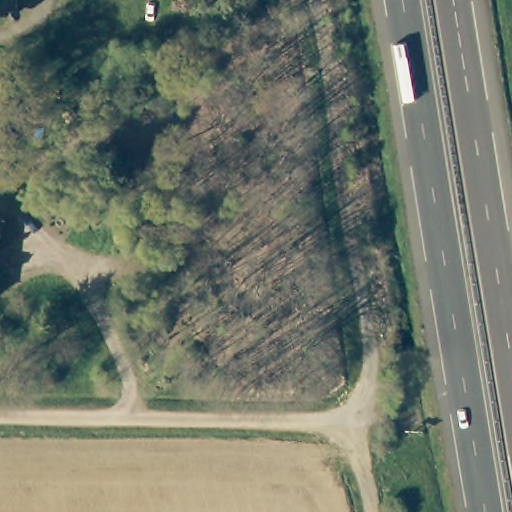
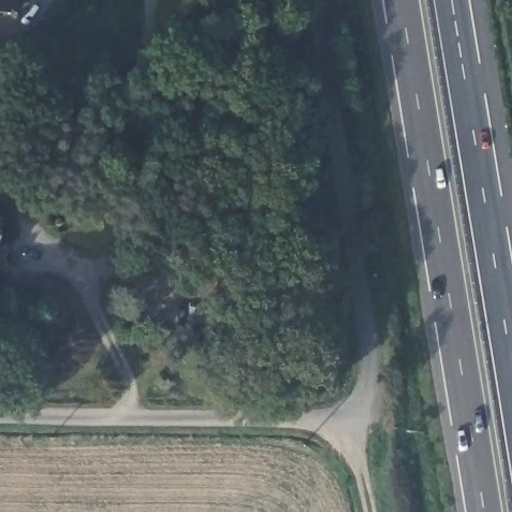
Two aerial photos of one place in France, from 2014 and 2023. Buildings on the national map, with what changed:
unchanged [(15,8),(0,7),(0,0),(15,0),(15,8)]
unchanged [(3,213),(0,243),(0,213),(3,213)]

